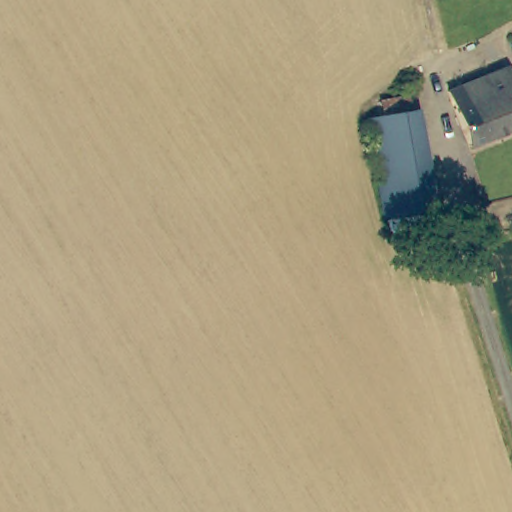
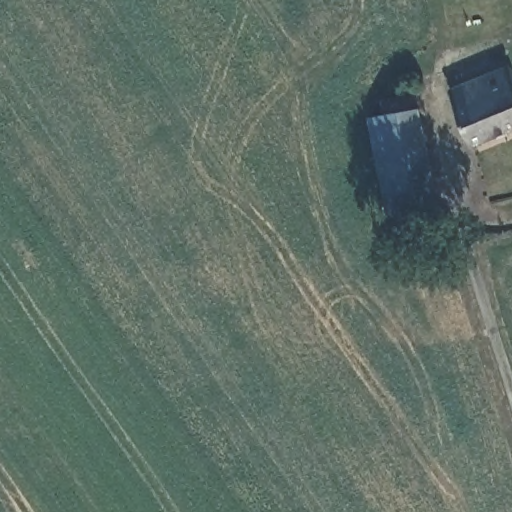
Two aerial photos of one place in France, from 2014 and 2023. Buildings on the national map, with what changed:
unchanged [(451,89),(508,68),(512,79),(512,129),(471,144),(451,89)]
unchanged [(436,205),(386,213),(370,119),(384,117),(382,102),(410,97),(412,112),(418,111),(436,205)]

